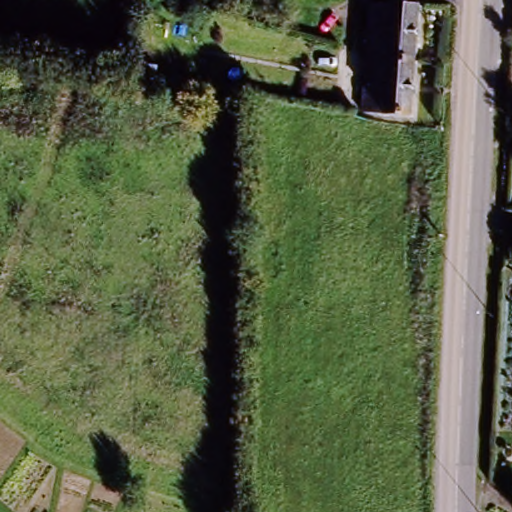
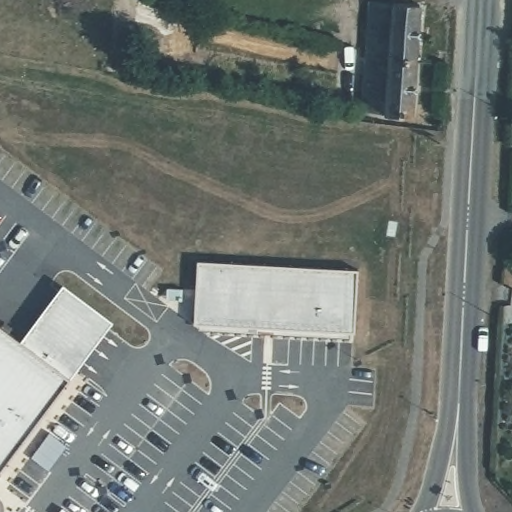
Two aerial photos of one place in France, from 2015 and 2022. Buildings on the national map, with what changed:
unchanged [(370,8),(417,11),(413,61),(367,58),(370,8)]
unchanged [(409,116),(362,112),(367,58),(413,61),(409,116)]
new [(356,269),(354,334),(195,324),(197,260),(356,269)]
new [(62,284),(114,324),(71,381),(0,474),(0,325),(17,338),(62,284)]

